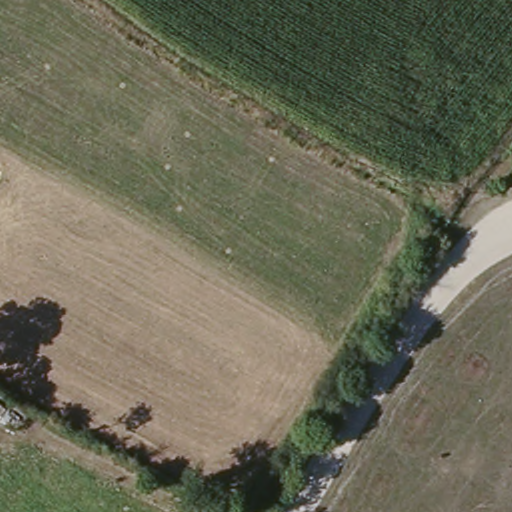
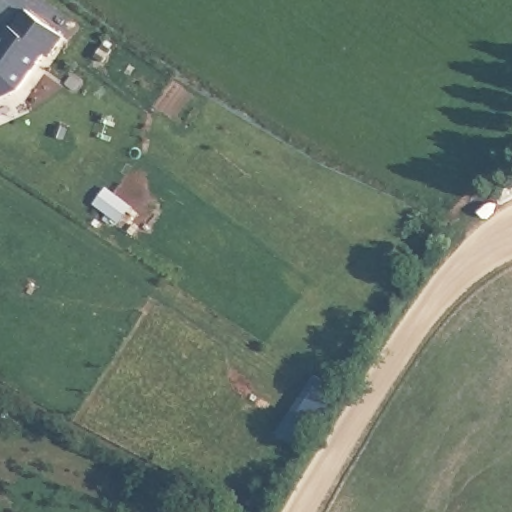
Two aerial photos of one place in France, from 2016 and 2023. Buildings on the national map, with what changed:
new [(11,32),(25,14),(61,40),(47,60),(42,56),(16,94),(0,101),(0,43),(9,30),(11,32)]

